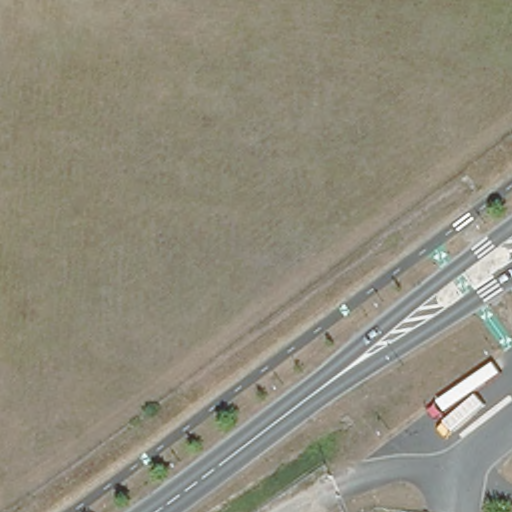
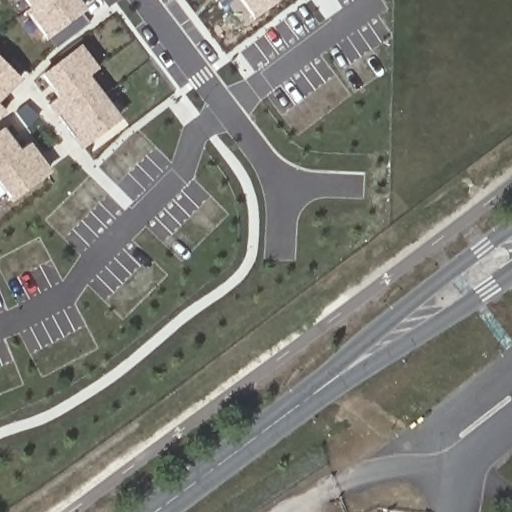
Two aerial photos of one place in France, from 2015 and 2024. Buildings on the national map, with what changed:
new [(28,0),(44,0),(34,8),(28,0)]
new [(29,11),(45,0),(75,0),(82,9),(93,23),(58,49),(47,36),(29,11)]
new [(225,0),(237,0),(226,8),(222,2),(225,0)]
new [(245,0),(276,0),(256,15),(245,0)]
new [(65,95),(49,74),(68,60),(63,54),(86,37),(90,43),(83,48),(99,69),(65,95)]
new [(15,58),(26,69),(17,79),(0,95),(0,60),(6,66),(15,58)]
new [(94,82),(90,76),(102,67),(106,73),(94,82)]
new [(55,103),(90,76),(105,96),(70,123),(55,103)]
new [(105,96),(117,88),(120,92),(108,101),(105,96)]
new [(85,142),(70,123),(105,96),(119,116),(85,142)]
new [(0,104),(5,110),(0,115),(0,104)]
new [(19,154),(0,169),(0,136),(4,133),(19,154)]
new [(15,199),(0,178),(0,169),(29,146),(48,174),(15,199)]

